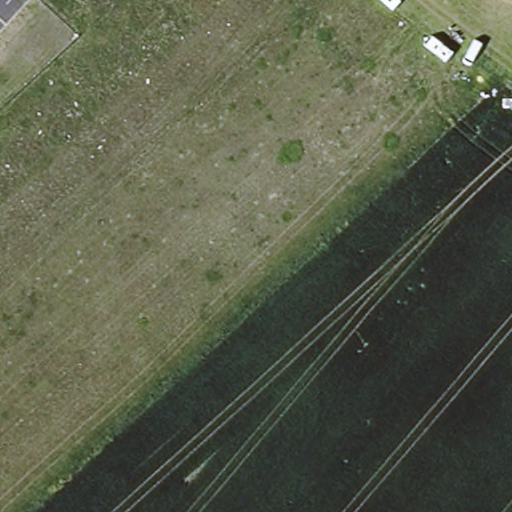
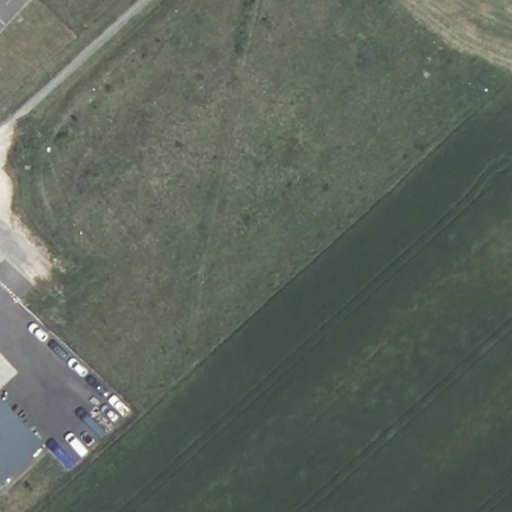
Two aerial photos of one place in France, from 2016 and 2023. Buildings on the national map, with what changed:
new [(44,444),(2,484),(0,482),(0,397),(44,444)]

